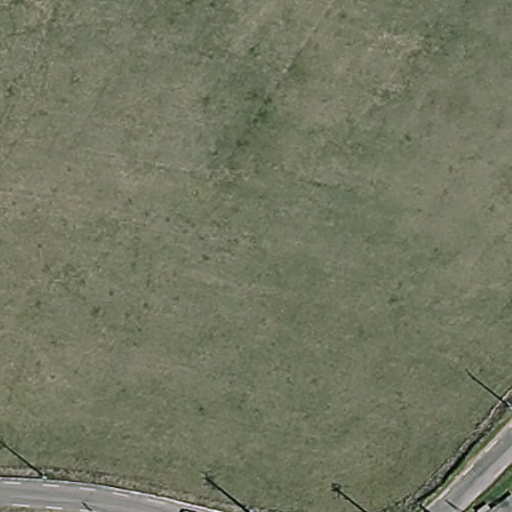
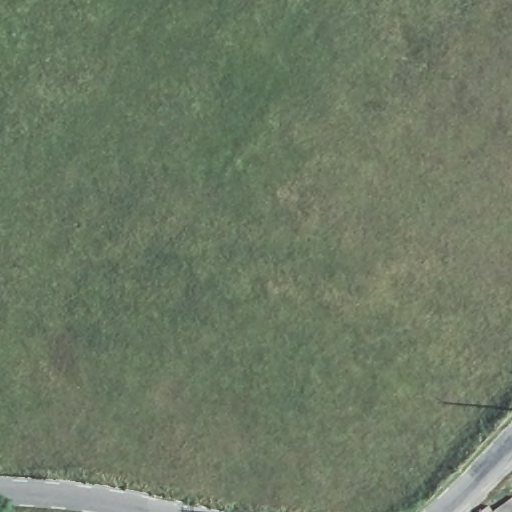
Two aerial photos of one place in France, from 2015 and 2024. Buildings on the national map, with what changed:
unchanged [(509,497),(512,501),(512,512),(489,512),(509,497)]

